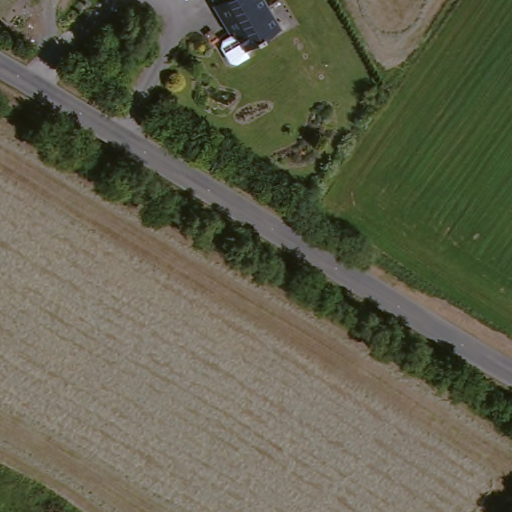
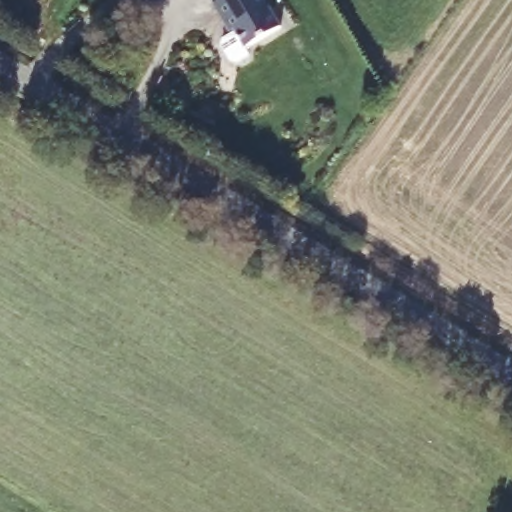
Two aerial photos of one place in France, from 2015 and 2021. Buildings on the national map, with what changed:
unchanged [(212,5),(209,0),(261,0),(278,28),(243,50),(231,31),(227,34),(210,6),(212,5)]

